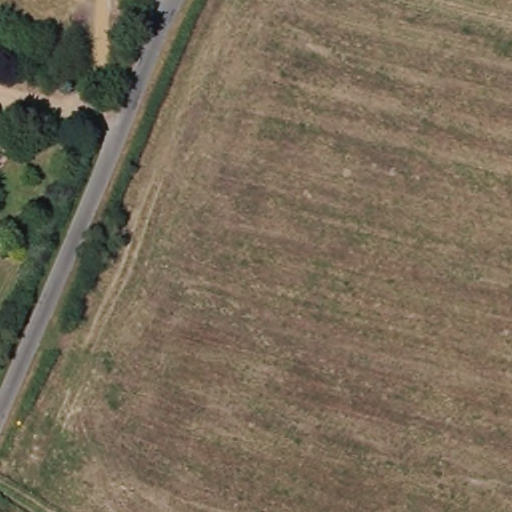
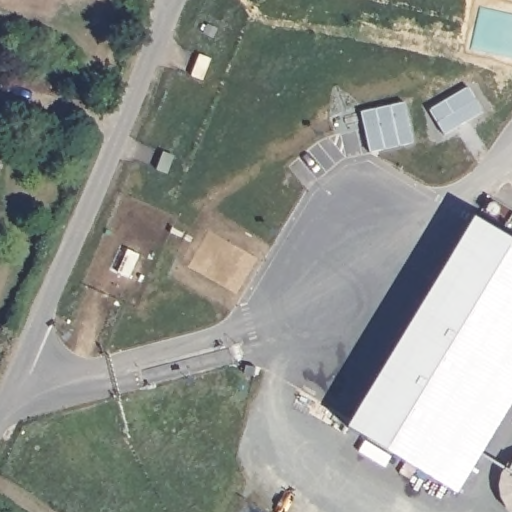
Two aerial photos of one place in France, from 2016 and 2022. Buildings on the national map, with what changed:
new [(399,99),(408,140),(365,150),(355,109),(399,99)]
new [(512,402),(456,493),(348,427),(475,218),(512,240),(512,402)]

